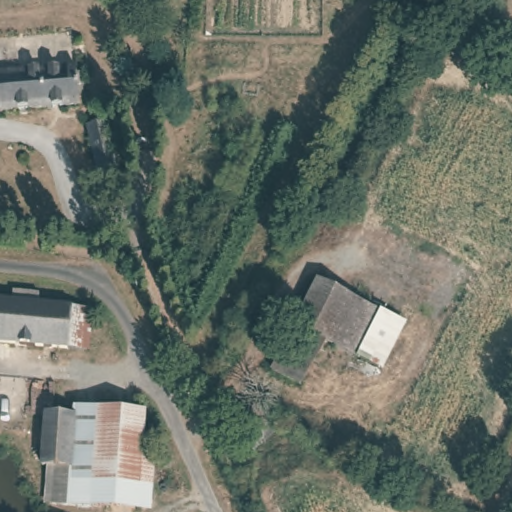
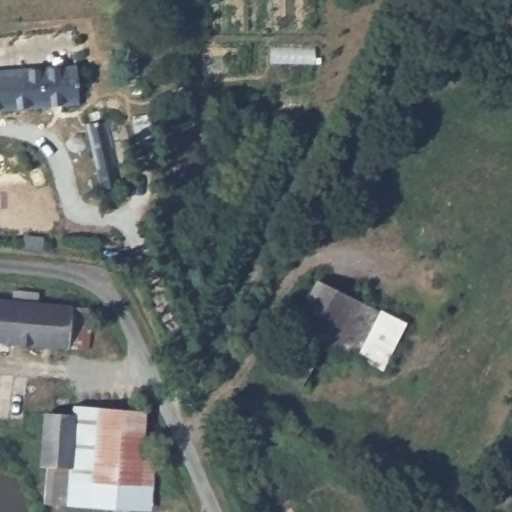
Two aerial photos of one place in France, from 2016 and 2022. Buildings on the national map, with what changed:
unchanged [(80,67),(82,105),(0,110),(0,73),(80,67)]
unchanged [(106,118),(122,183),(104,187),(88,123),(106,118)]
unchanged [(326,280),(388,315),(364,356),(320,332),(294,377),(277,367),(326,280)]
unchanged [(68,345),(0,339),(0,300),(15,301),(16,285),(43,288),(42,304),(71,307),(93,309),(90,347),(68,345)]
unchanged [(70,424),(69,421),(70,411),(141,411),(139,440),(70,424)]
unchanged [(47,469),(47,421),(69,421),(70,424),(70,468),(47,469)]
unchanged [(140,509),(70,510),(70,468),(70,424),(139,440),(140,509)]

